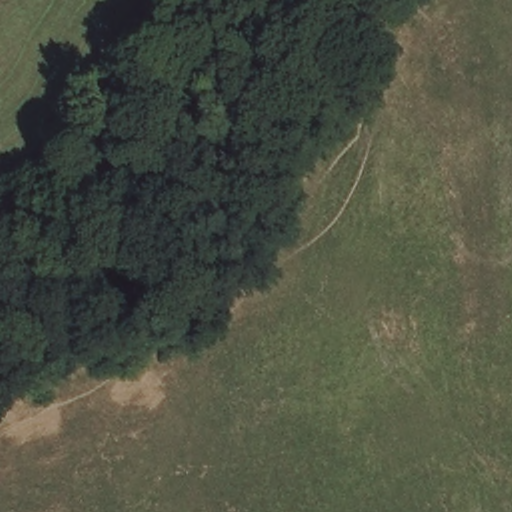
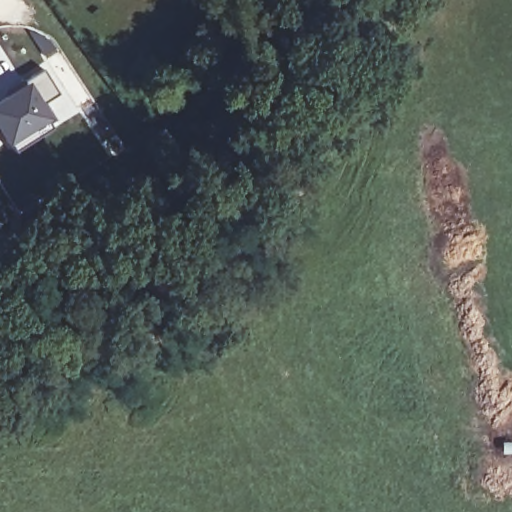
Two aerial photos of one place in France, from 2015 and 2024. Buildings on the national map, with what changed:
unchanged [(303,40),(302,48),(292,46),(293,39),(303,40)]
unchanged [(277,51),(284,54),(282,60),(275,57),(277,51)]
new [(0,132),(0,98),(6,95),(3,90),(43,68),(57,92),(42,103),(49,116),(47,118),(52,126),(14,150),(7,141),(0,132)]

